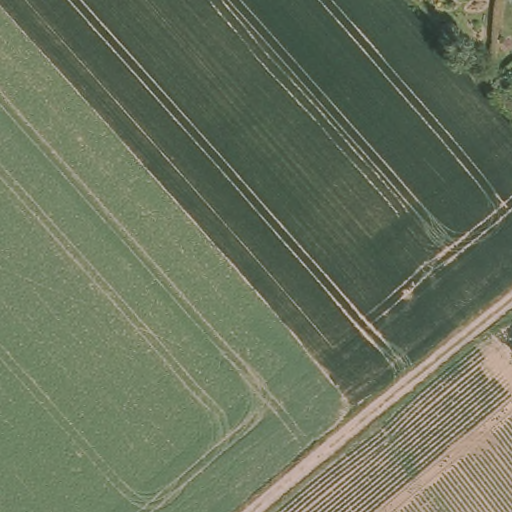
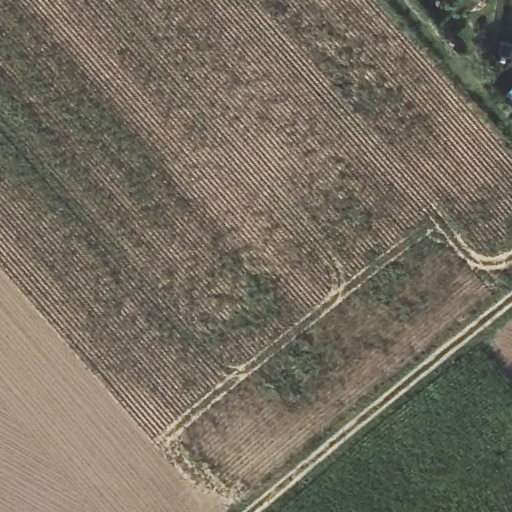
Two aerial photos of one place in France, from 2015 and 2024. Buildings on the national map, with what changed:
[]

